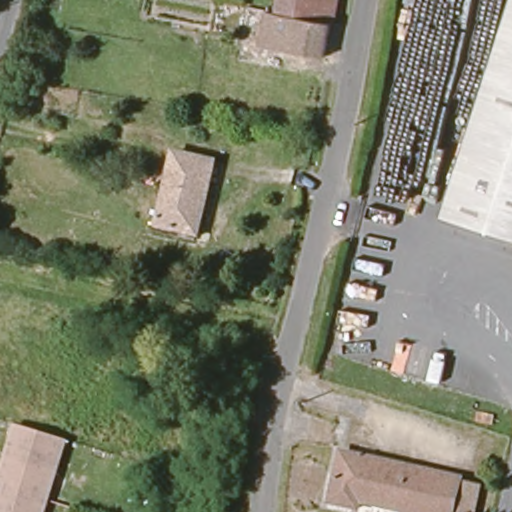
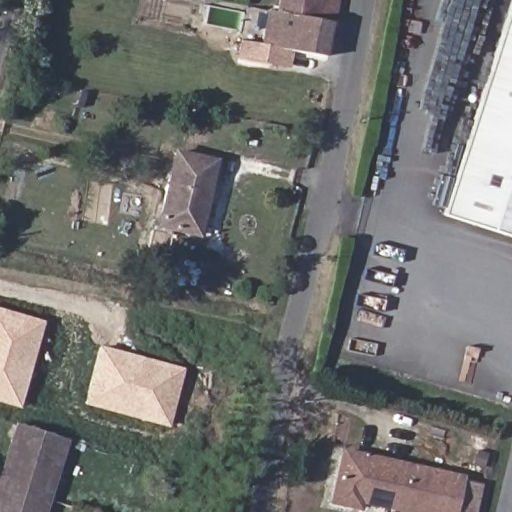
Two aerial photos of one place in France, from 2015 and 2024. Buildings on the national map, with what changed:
unchanged [(283,0),(341,0),(337,26),(279,15),(283,0)]
unchanged [(446,214),(512,13),(512,235),(446,214)]
unchanged [(247,65),(250,45),(249,45),(254,15),(269,17),(270,14),(279,15),(337,26),(343,27),(342,40),(331,37),(328,60),(278,50),(275,70),(247,65)]
unchanged [(197,239),(162,230),(179,157),(220,166),(209,212),(203,240),(197,239)]
new [(0,403),(0,308),(44,321),(19,409),(0,403)]
new [(185,368),(170,428),(83,405),(99,346),(185,368)]
unchanged [(48,512),(0,512),(0,491),(1,487),(1,485),(19,427),(69,442),(51,501),(50,503),(48,512)]
unchanged [(396,512),(365,505),(363,512),(354,512),(335,507),(347,455),(465,481),(464,485),(487,490),(483,512),(396,512)]

